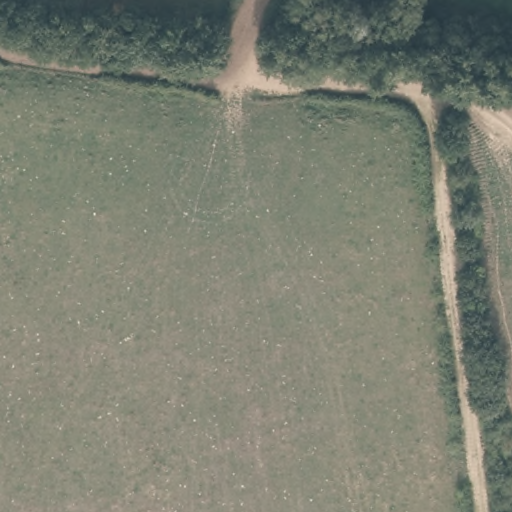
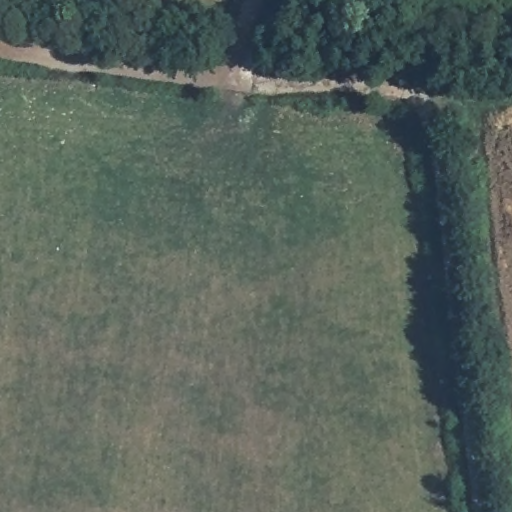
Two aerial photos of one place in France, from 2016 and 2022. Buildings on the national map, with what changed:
[]

